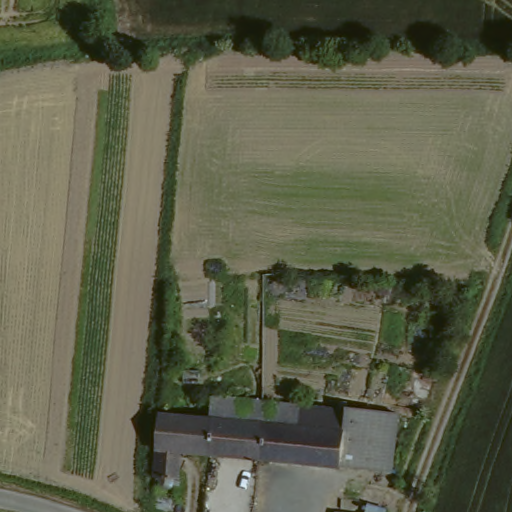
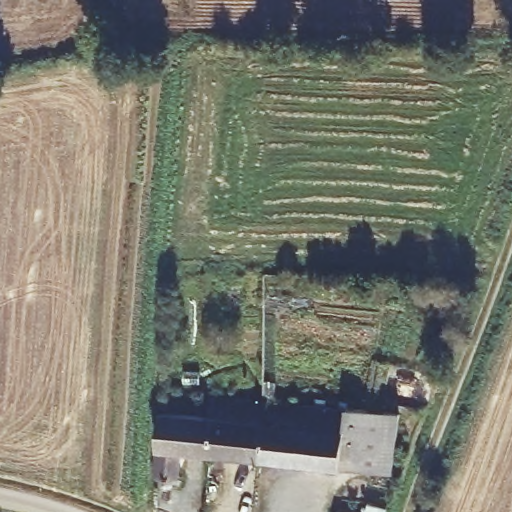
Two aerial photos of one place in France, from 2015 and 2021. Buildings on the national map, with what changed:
unchanged [(212,453),(215,412),(217,391),(267,396),(305,400),(302,427),(267,425),(263,458),(212,453)]
unchanged [(263,458),(267,425),(302,427),(305,400),(401,410),(396,470),(263,458)]
unchanged [(185,450),(182,477),(176,476),(176,482),(175,485),(172,486),(170,487),(167,487),(165,485),(164,483),(163,482),(164,475),(157,475),(164,408),(192,410),(215,412),(212,453),(185,450)]
unchanged [(340,508),(364,512),(339,512),(340,508)]

